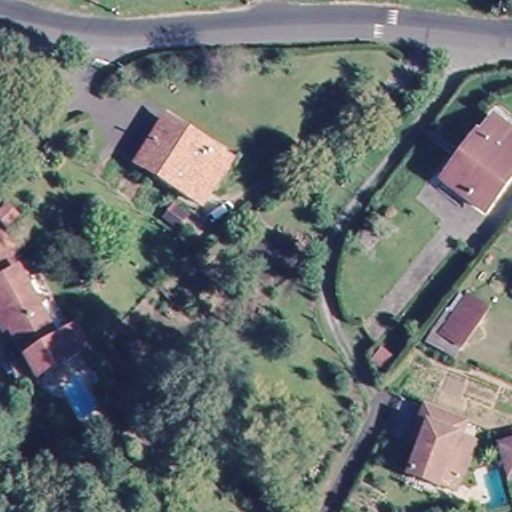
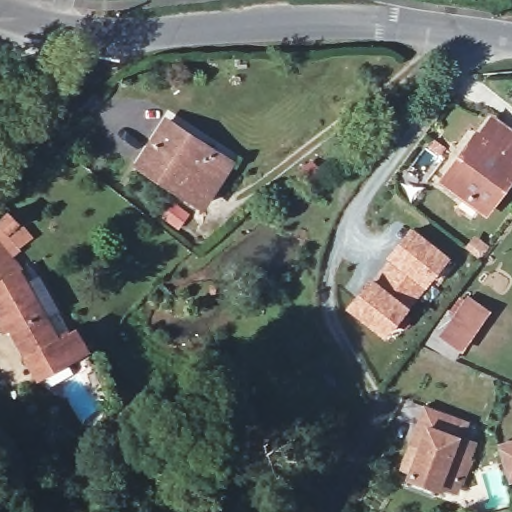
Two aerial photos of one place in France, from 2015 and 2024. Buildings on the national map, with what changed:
unchanged [(512,175),(485,211),(443,180),(476,134),(480,137),(493,119),(512,133),(512,175)]
unchanged [(166,121),(229,160),(200,203),(139,164),(166,121)]
unchanged [(0,223),(0,216),(5,211),(17,222),(8,231),(0,223)]
new [(449,257),(385,342),(345,310),(410,227),(449,257)]
unchanged [(75,330),(86,348),(39,375),(0,306),(0,249),(18,272),(57,341),(75,330)]
unchanged [(481,317),(471,331),(457,352),(437,339),(461,304),(478,316),(481,317)]
unchanged [(415,480),(411,477),(402,474),(423,427),(430,411),(444,417),(472,429),(465,445),(476,450),(461,483),(455,497),(440,491),(415,480)]
unchanged [(493,449),(512,443),(512,479),(503,482),(493,449)]

